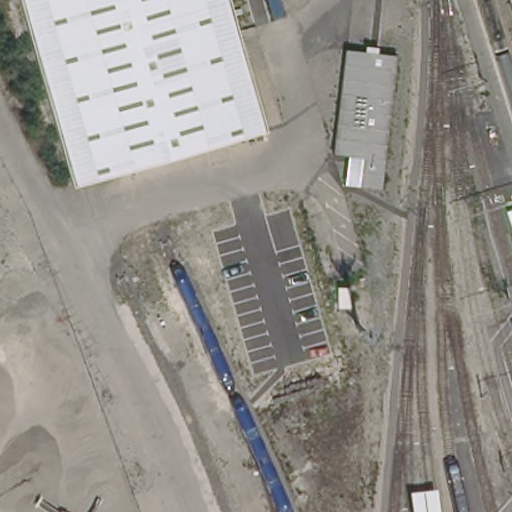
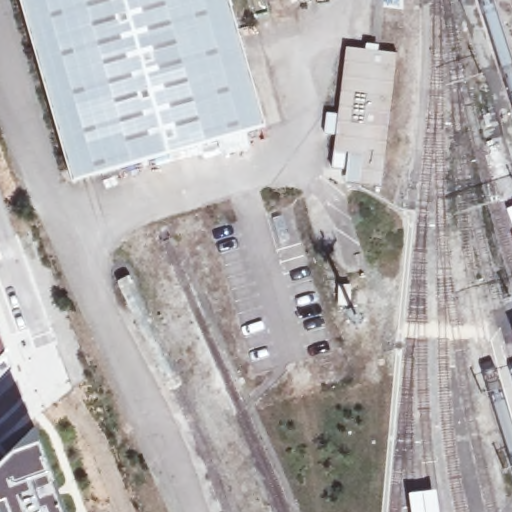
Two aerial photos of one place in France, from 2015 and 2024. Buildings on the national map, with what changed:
unchanged [(242,37),(267,127),(75,180),(24,0),(232,0),(242,37)]
unchanged [(344,185),(347,156),(333,154),(345,49),(397,56),(380,188),(344,185)]
unchanged [(505,212),(512,209),(512,231),(505,212)]
new [(78,512),(11,512),(7,502),(0,503),(0,462),(42,420),(54,450),(78,512)]
unchanged [(434,494),(437,512),(410,512),(407,496),(434,494)]

